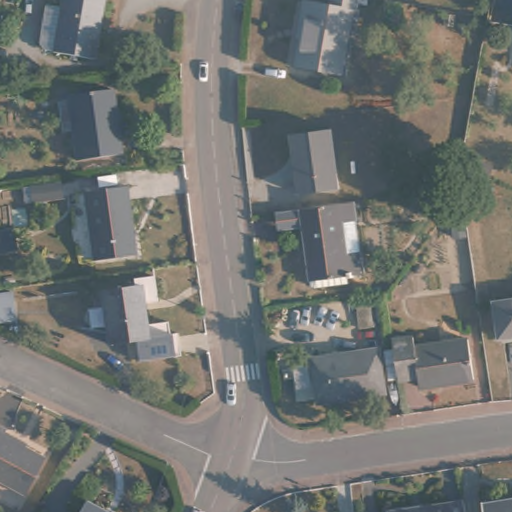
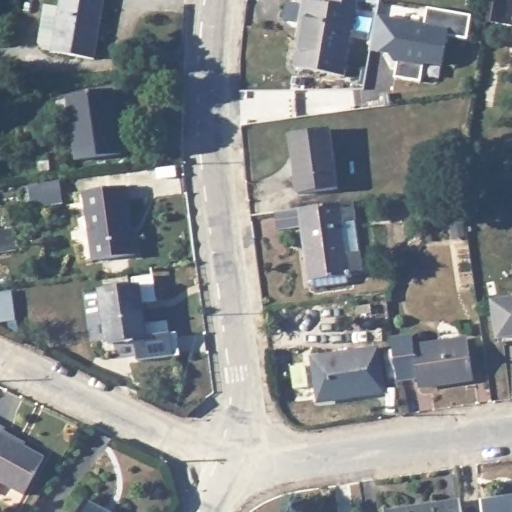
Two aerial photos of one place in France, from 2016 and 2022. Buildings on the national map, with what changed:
unchanged [(61,0),(100,0),(90,59),(53,52),(61,0)]
unchanged [(299,67),(312,2),(333,6),(334,0),(358,0),(345,75),(299,67)]
new [(447,36),(442,67),(425,64),(423,66),(421,82),(396,77),(398,65),(389,54),(370,51),(376,15),(425,25),(427,10),(471,17),(467,40),(447,36)]
unchanged [(76,158),(72,131),(61,132),(58,102),(67,102),(67,99),(111,94),(119,152),(76,158)]
unchanged [(299,194),(290,136),(327,131),(336,188),(299,194)]
unchanged [(465,161),(482,167),(474,191),(462,187),(457,185),(465,161)]
unchanged [(83,194),(124,189),(133,255),(91,261),(83,194)]
unchanged [(365,268),(355,270),(356,279),(322,285),(318,282),(309,223),(284,227),(282,210),(306,206),(355,197),(365,268)]
unchanged [(108,344),(103,292),(137,287),(143,340),(108,344)]
unchanged [(512,334),(500,336),(495,304),(512,302),(512,334)]
unchanged [(390,341),(412,338),(413,347),(466,341),(471,377),(420,385),(418,376),(397,380),(390,341)]
unchanged [(314,360),(377,350),(383,392),(320,402),(314,360)]
unchanged [(0,483),(0,429),(6,432),(5,435),(45,457),(24,496),(0,483)]
unchanged [(88,498),(113,512),(80,512),(88,498)]
unchanged [(482,505),(512,500),(512,512),(483,512),(482,505)]
unchanged [(460,502),(461,512),(393,512),(460,502)]

